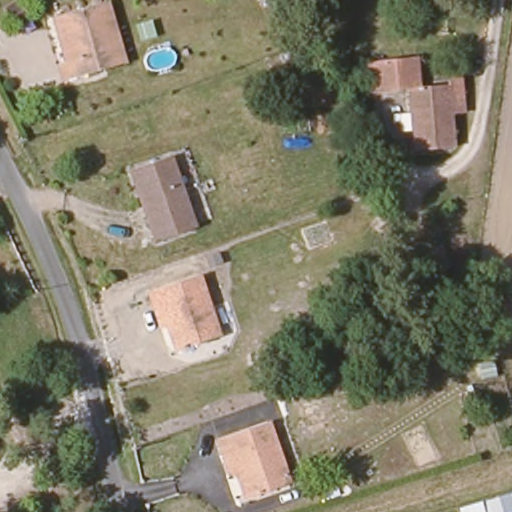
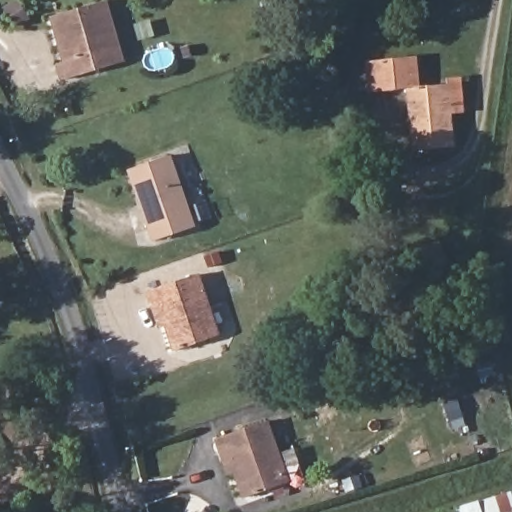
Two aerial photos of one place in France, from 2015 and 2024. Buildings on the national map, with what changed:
unchanged [(65,82),(60,62),(69,59),(57,16),(110,2),(129,64),(65,82)]
unchanged [(409,88),(437,80),(436,73),(449,69),(461,99),(447,104),(460,137),(423,151),(399,89),(379,95),(366,99),(359,76),(371,72),(399,62),(409,88)]
unchanged [(156,237),(130,167),(174,152),(200,222),(156,237)]
unchanged [(162,310),(156,292),(205,275),(224,328),(225,331),(181,346),(180,341),(175,323),(167,325),(162,310)]
unchanged [(221,453),(217,440),(272,422),(290,483),(246,497),(239,475),(228,477),(221,453)]
unchanged [(512,494),(512,512),(510,512),(459,512),(457,504),(510,488),(512,494)]

